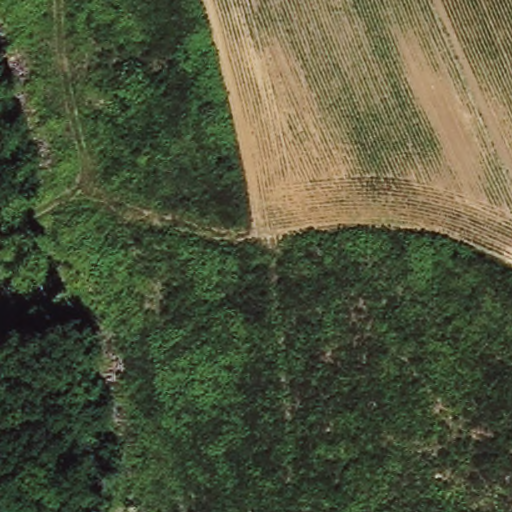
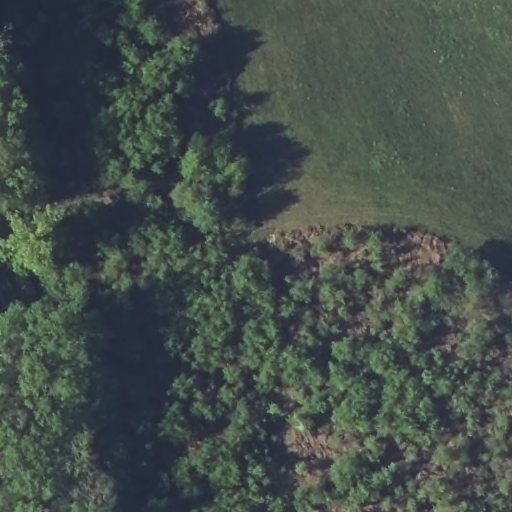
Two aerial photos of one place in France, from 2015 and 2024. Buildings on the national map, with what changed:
[]

